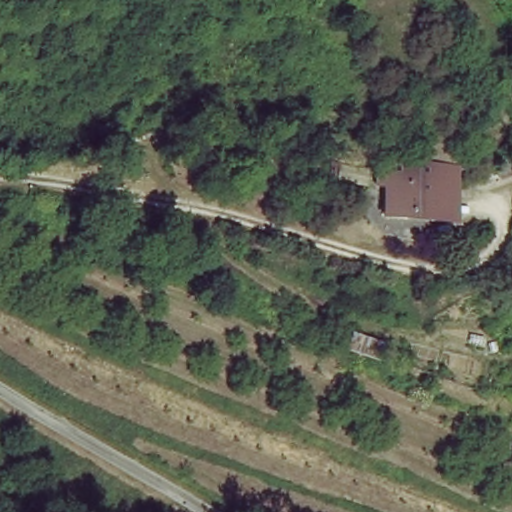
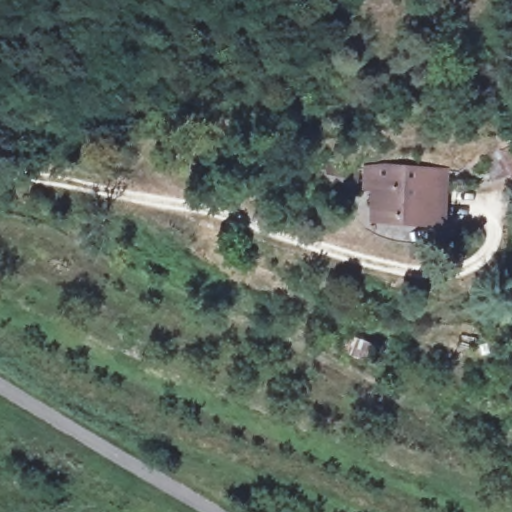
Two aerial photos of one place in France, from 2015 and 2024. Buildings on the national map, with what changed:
unchanged [(427,228),(379,219),(388,173),(437,182),(427,228)]

